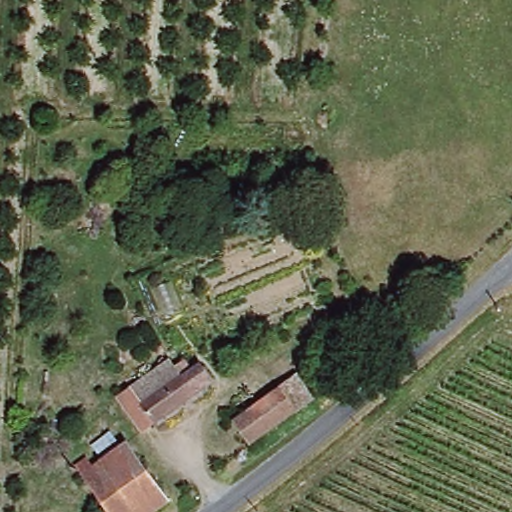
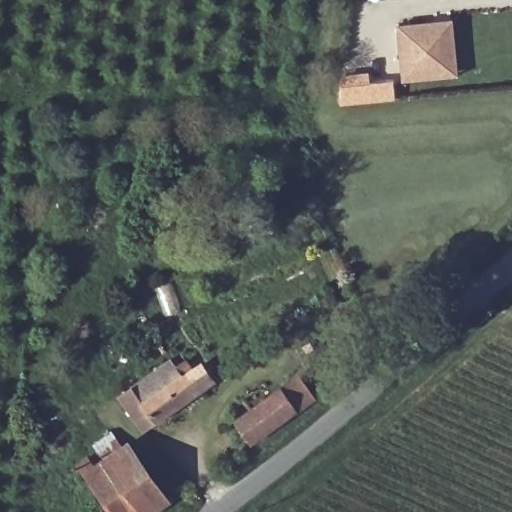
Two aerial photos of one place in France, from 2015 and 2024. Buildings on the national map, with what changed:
new [(453,18),(458,75),(401,82),(394,25),(453,18)]
new [(342,77),(368,74),(369,82),(393,80),(395,98),(340,105),(342,77)]
unchanged [(136,427),(116,396),(134,384),(136,382),(174,357),(195,392),(136,427)]
unchanged [(320,397),(244,441),(229,416),(303,370),(320,397)]
unchanged [(111,512),(84,475),(83,473),(95,466),(99,470),(130,449),(169,502),(155,512),(111,512)]

